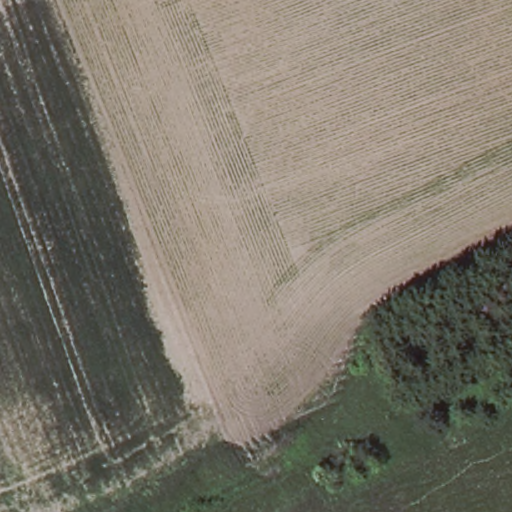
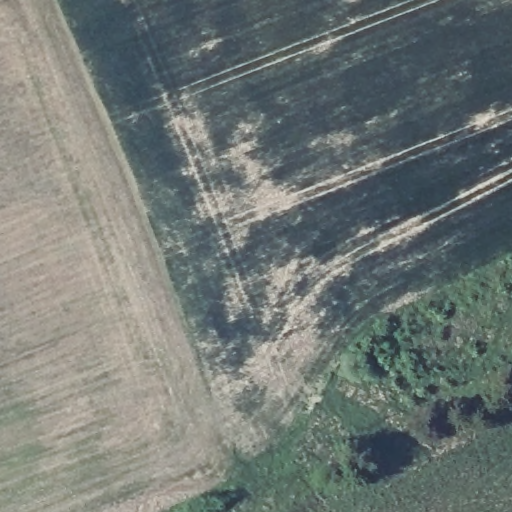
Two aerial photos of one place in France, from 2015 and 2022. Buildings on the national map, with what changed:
[]

